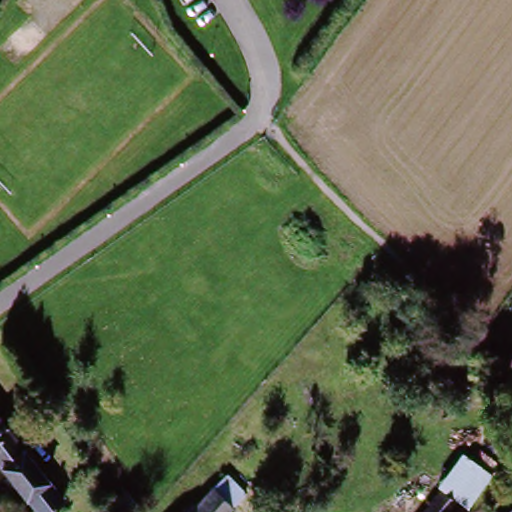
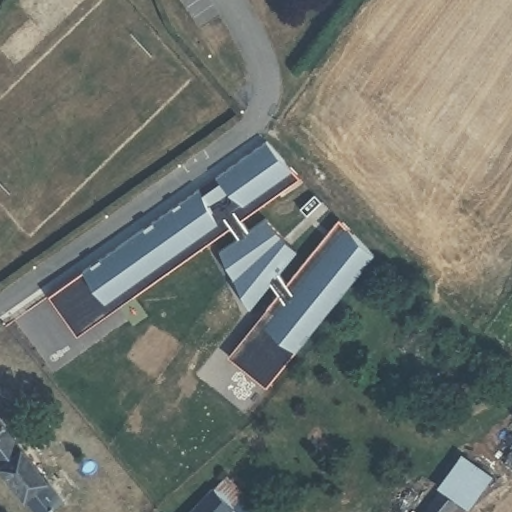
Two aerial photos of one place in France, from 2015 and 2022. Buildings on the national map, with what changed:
new [(300,176),(242,217),(250,230),(267,217),(298,250),(281,271),(288,281),(340,217),(375,253),(295,351),(267,386),(228,355),(278,295),(269,283),(249,308),(218,250),(237,239),(228,228),(78,334),(49,293),(266,138),(300,176)]
unchanged [(66,498),(51,512),(36,512),(0,470),(0,423),(66,498)]
new [(493,475),(468,509),(453,498),(437,486),(462,451),(493,475)]
unchanged [(453,498),(443,512),(420,512),(437,486),(453,498)]
unchanged [(230,511),(230,512),(184,512),(208,488),(230,511)]
unchanged [(125,512),(98,512),(115,498),(125,512)]
demolished [(512,512),(507,512),(512,507),(512,512)]

